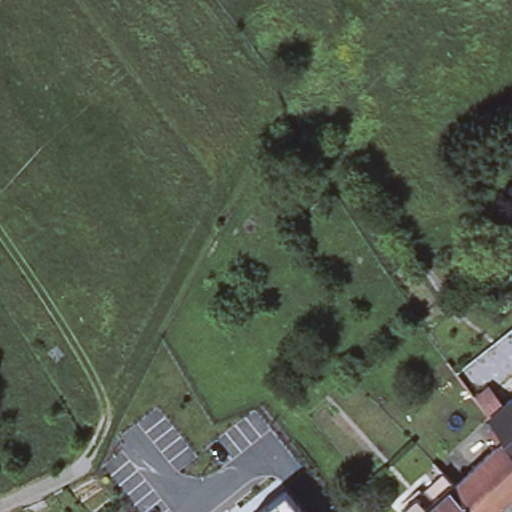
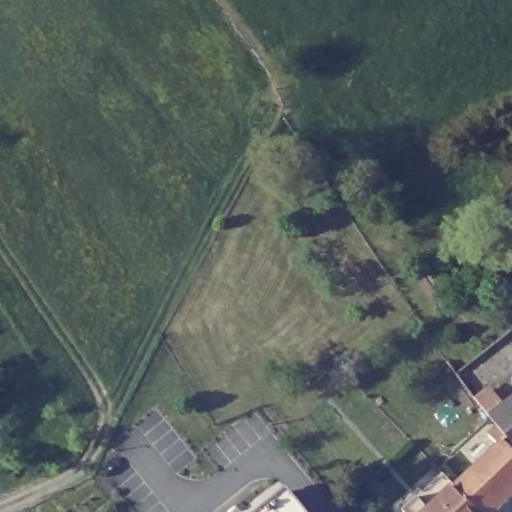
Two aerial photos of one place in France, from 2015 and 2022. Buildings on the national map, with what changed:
unchanged [(467,476),(495,452),(482,439),(495,427),(489,420),(512,402),(512,450),(505,441),(502,444),(512,455),(512,498),(507,503),(499,510),(497,512),(404,512),(443,476),(455,488),(467,476)]
unchanged [(306,512),(260,512),(287,489),(306,512)]

